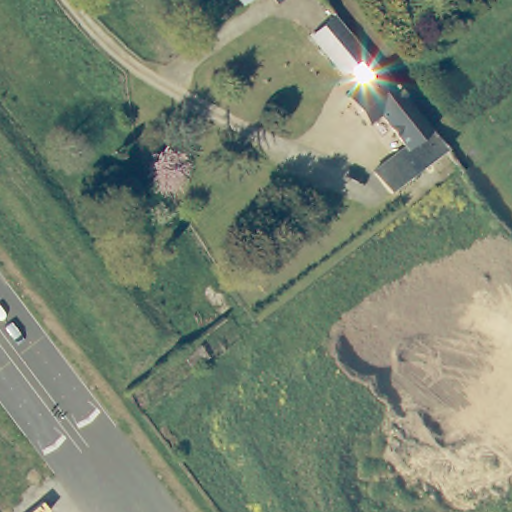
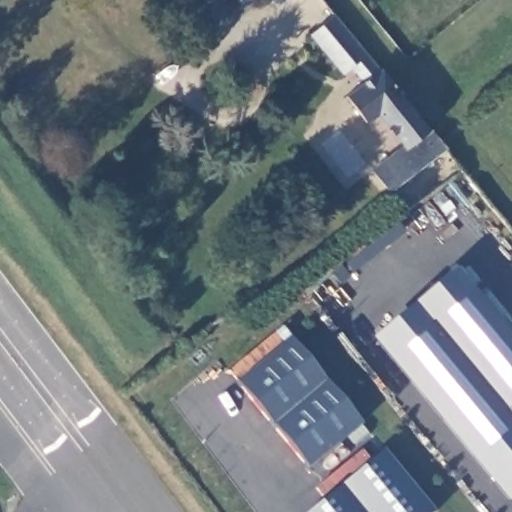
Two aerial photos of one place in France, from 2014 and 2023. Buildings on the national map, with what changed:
unchanged [(247,0),(241,4),(238,0),(247,0)]
unchanged [(441,156),(382,199),(367,182),(401,153),(374,120),(362,130),(342,105),(359,91),(346,75),(339,81),(305,41),(326,24),(327,23),(373,79),(376,76),(381,82),(433,144),(442,155),(441,156)]
new [(508,504),(371,340),(456,270),(512,337),(512,500),(508,504)]
new [(308,469),(238,382),(289,338),(362,424),(308,469)]
new [(382,449),(433,512),(308,512),(382,449)]

